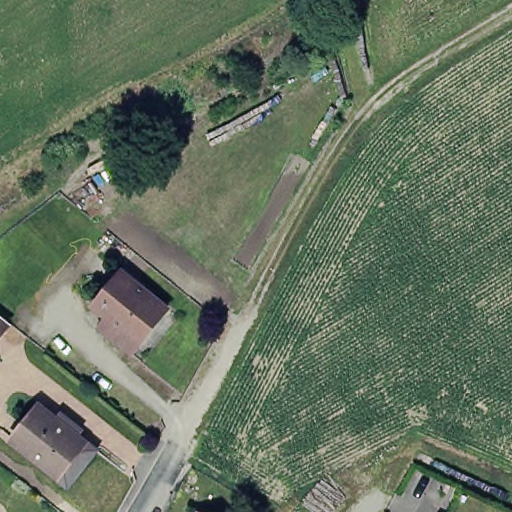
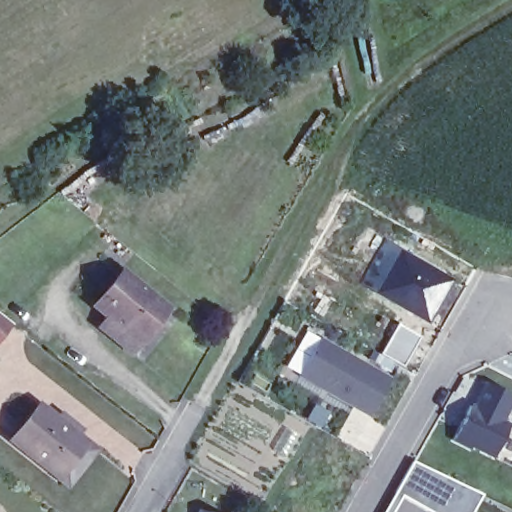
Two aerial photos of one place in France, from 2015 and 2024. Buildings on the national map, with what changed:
new [(460,282),(435,331),(380,302),(405,252),(460,282)]
unchanged [(137,348),(126,340),(101,320),(92,312),(100,302),(89,292),(117,258),(163,295),(174,303),(137,348)]
new [(369,418),(298,378),(321,339),(390,378),(369,418)]
new [(470,449),(469,452),(452,443),(471,405),(473,406),(486,382),(512,394),(512,408),(505,421),(511,425),(493,460),(470,449)]
unchanged [(71,483),(60,475),(14,437),(44,401),(90,437),(100,446),(71,483)]
new [(399,512),(387,512),(417,460),(489,495),(479,512),(430,512),(406,497),(399,512)]
demolished [(242,512),(202,512),(207,500),(242,511),(242,512)]
unchanged [(203,512),(203,511),(208,512),(203,512)]

